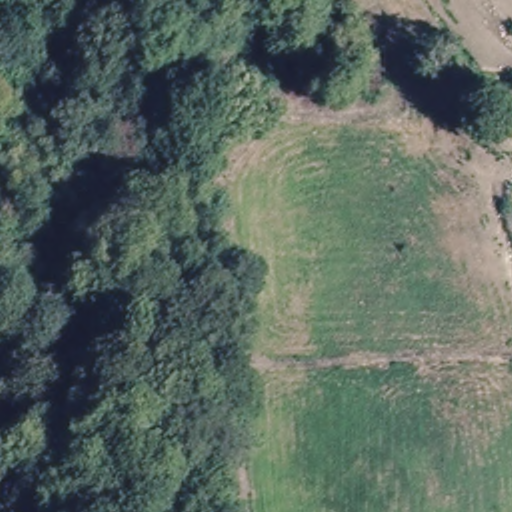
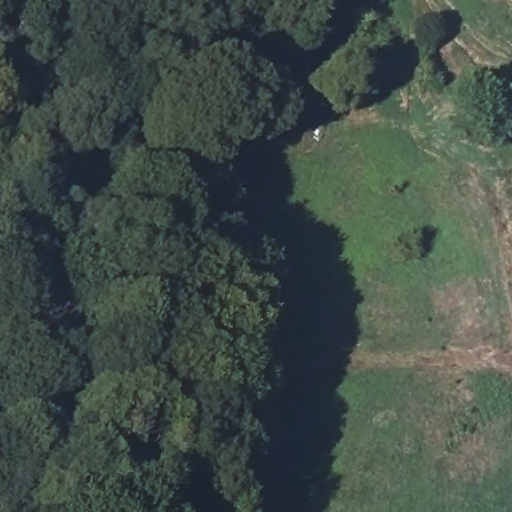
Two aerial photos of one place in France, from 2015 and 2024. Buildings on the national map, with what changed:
[]

